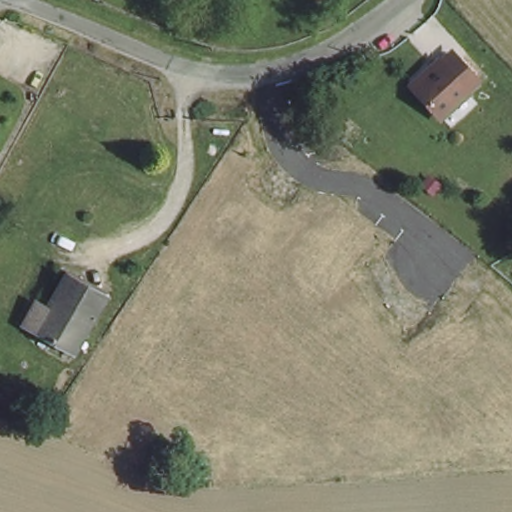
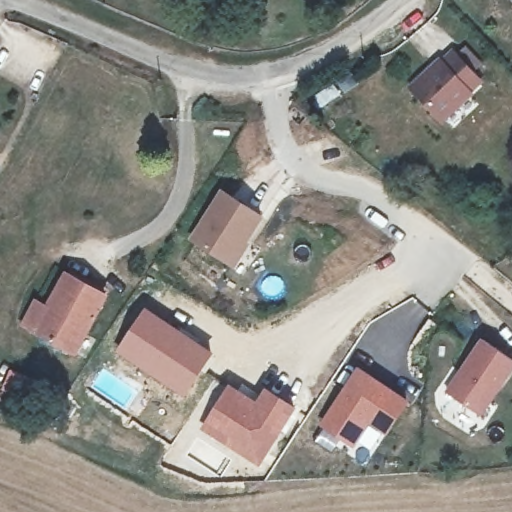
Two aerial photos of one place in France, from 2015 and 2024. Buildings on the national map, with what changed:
unchanged [(436,54),(438,55),(449,46),(473,74),(462,84),(463,85),(436,109),(409,77),(436,54)]
new [(221,192),(258,216),(228,262),(190,238),(221,192)]
unchanged [(98,298),(75,355),(33,333),(60,277),(98,298)]
new [(144,307),(213,352),(183,396),(114,350),(144,307)]
unchanged [(481,338),(512,359),(512,363),(479,414),(445,392),(481,338)]
new [(321,427),(318,424),(357,365),(410,400),(397,419),(381,408),(364,430),(350,421),(331,451),(314,440),(321,427)]
new [(228,382),(255,400),(264,386),(297,408),(259,468),(198,428),(228,382)]

